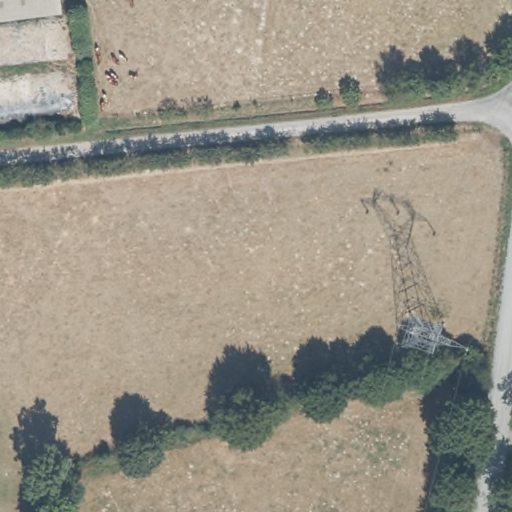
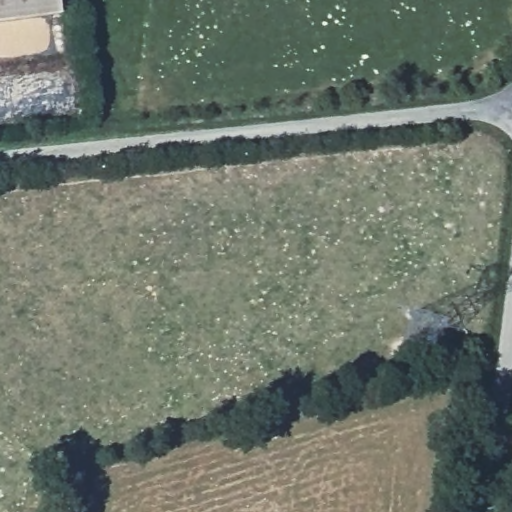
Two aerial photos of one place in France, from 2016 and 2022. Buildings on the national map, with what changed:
unchanged [(68,11),(0,21),(0,0),(66,0),(68,11)]

